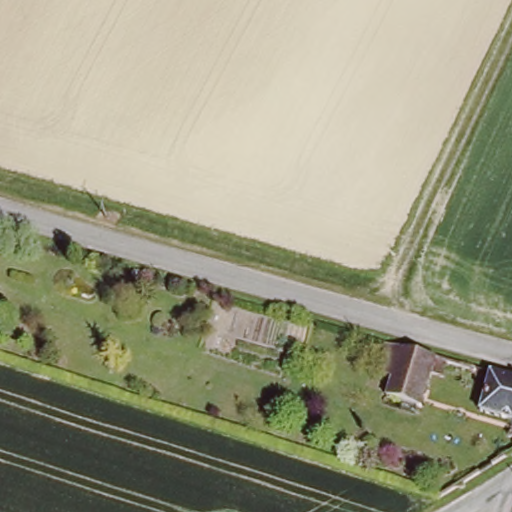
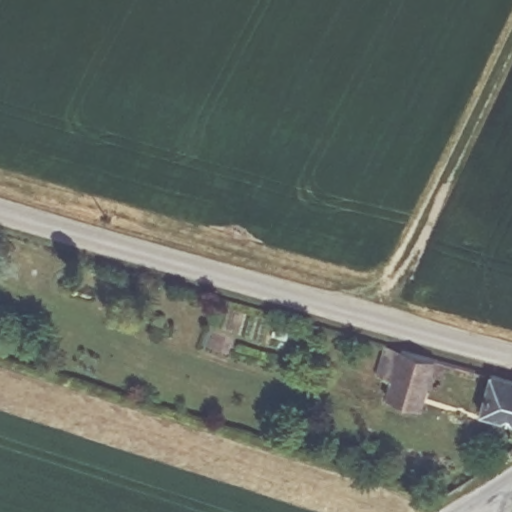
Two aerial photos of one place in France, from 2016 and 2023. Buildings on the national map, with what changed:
unchanged [(434,374),(422,415),(386,404),(394,382),(374,375),(384,344),(401,349),(404,350),(455,364),(451,378),(434,374)]
unchanged [(499,375),(512,378),(512,421),(486,414),(499,375)]

